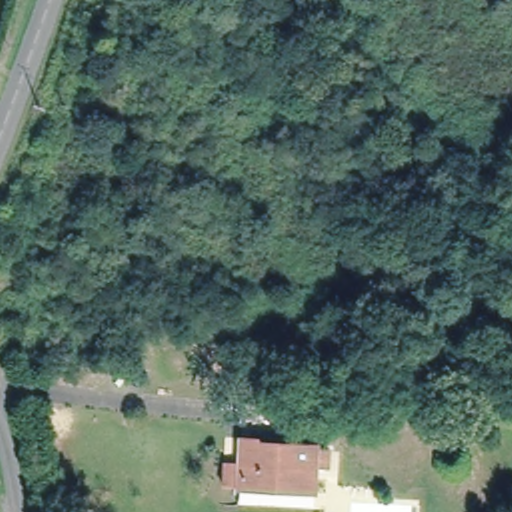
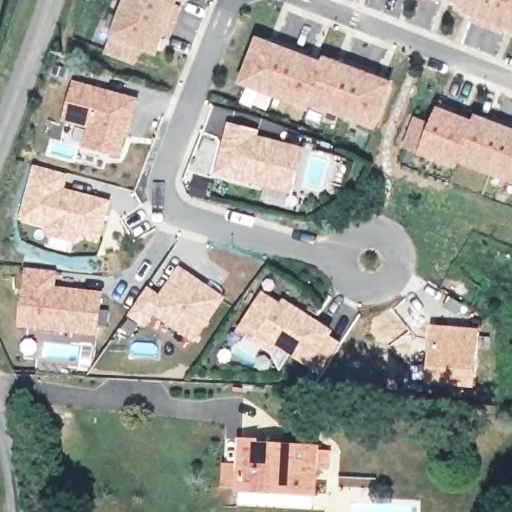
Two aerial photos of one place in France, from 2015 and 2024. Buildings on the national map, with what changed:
new [(176,5),(184,7),(172,39),(165,36),(160,55),(141,50),(137,65),(105,54),(111,37),(124,0),(179,0),(176,5)]
new [(438,2),(433,0),(438,0),(438,2)]
new [(512,32),(505,30),(475,19),(456,12),(460,2),(453,0),(512,0),(512,32)]
new [(323,61),(325,56),(396,82),(378,130),(312,105),(310,111),(238,84),(256,37),(323,61)]
new [(140,100),(121,157),(82,148),(87,130),(62,125),(75,81),(140,100)]
new [(437,105),(475,120),(476,115),(512,127),(512,181),(460,163),(457,168),(420,154),(403,149),(415,115),(433,122),(437,105)]
new [(260,130),(258,136),(305,149),(295,195),(215,174),(227,123),(260,130)]
new [(70,174),(66,188),(110,203),(101,242),(77,236),(75,244),(45,236),(46,227),(20,220),(35,165),(70,174)]
new [(159,295),(179,266),(226,298),(195,344),(154,317),(145,327),(129,315),(147,288),(159,295)]
new [(59,273),(57,286),(104,291),(100,336),(19,327),(25,268),(59,273)]
new [(283,302),(286,297),(335,330),(314,368),(278,344),(271,355),(236,332),(264,290),(283,302)]
new [(430,324),(481,328),(476,388),(425,384),(430,324)]
unchanged [(246,488),(225,487),(225,465),(246,465),(247,441),(265,441),(265,446),(335,448),(335,466),(322,466),(321,492),(246,490),(246,488)]

